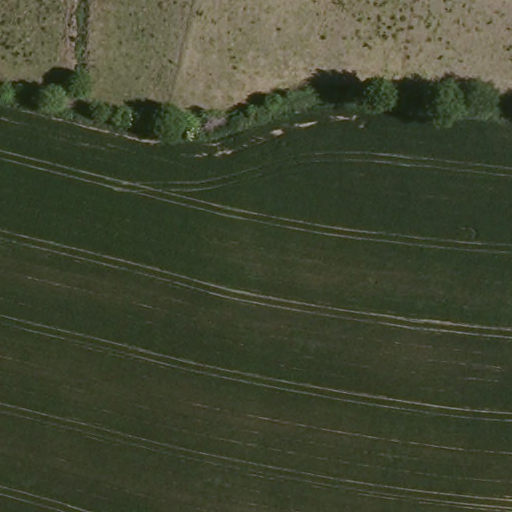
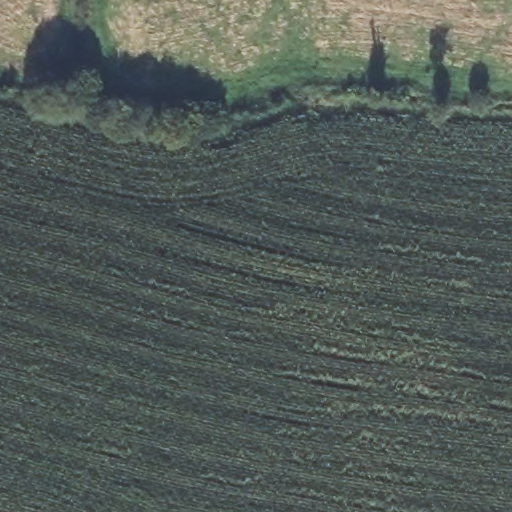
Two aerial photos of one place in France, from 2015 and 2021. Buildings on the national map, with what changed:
[]

